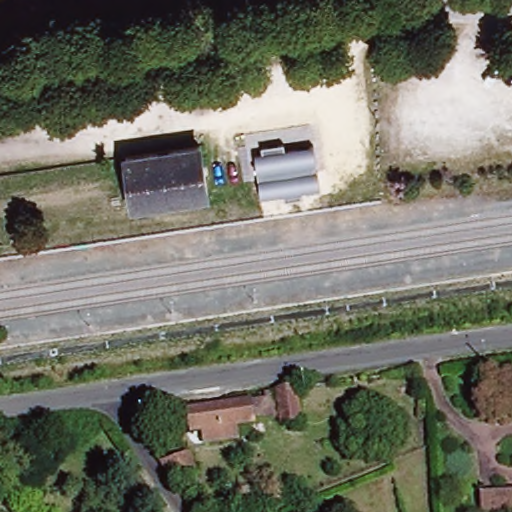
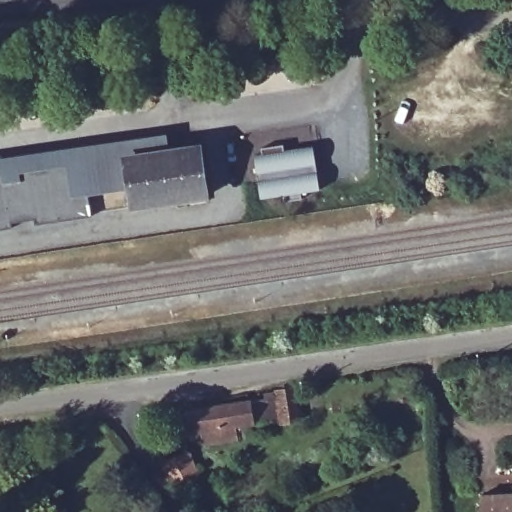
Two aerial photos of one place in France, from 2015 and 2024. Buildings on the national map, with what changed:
new [(169,151),(124,158),(129,190),(88,195),(90,215),(34,223),(34,218),(9,222),(9,226),(0,227),(0,159),(166,134),(169,151)]
unchanged [(199,146),(206,196),(131,207),(124,158),(199,146)]
unchanged [(319,192),(261,200),(255,157),(313,148),(319,192)]
unchanged [(296,416),(279,418),(274,388),(291,386),(296,416)]
unchanged [(254,400),(258,422),(183,435),(179,413),(254,400)]
unchanged [(12,476),(0,482),(0,448),(12,476)]
unchanged [(479,499),(512,496),(512,512),(480,512),(479,499)]

